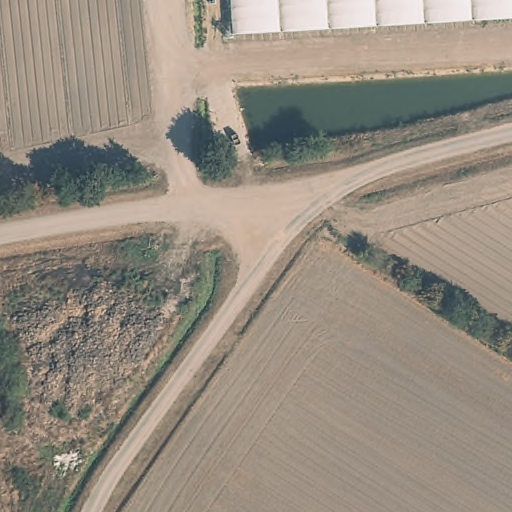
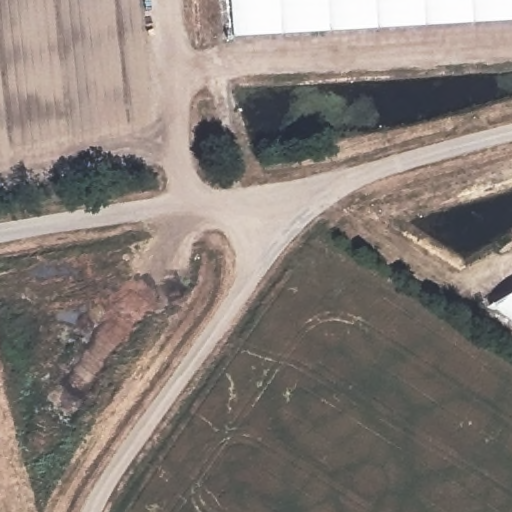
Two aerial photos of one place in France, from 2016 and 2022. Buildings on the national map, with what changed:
unchanged [(234,0),(512,0),(512,19),(236,36),(234,0)]
new [(512,291),(512,320),(488,306),(512,291)]

